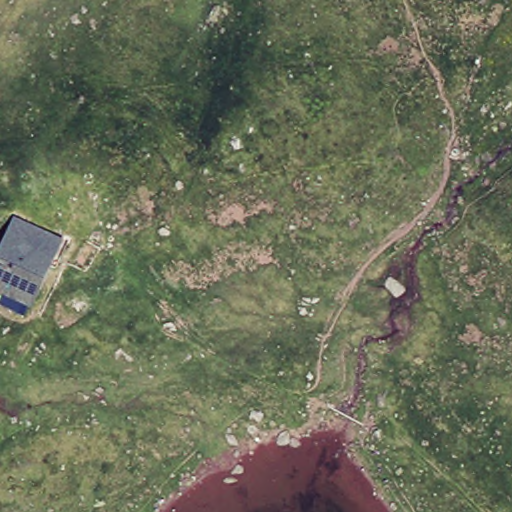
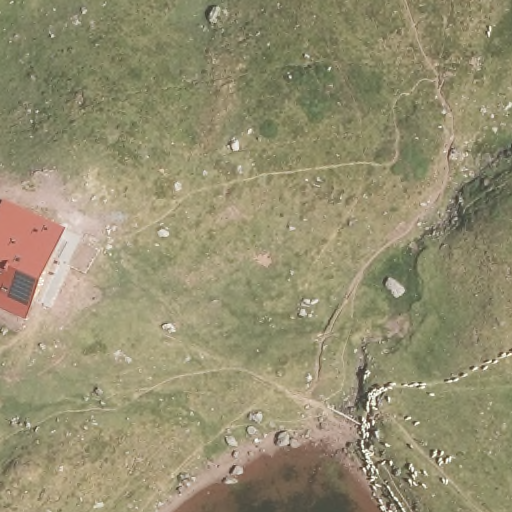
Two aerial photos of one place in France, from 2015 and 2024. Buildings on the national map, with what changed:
unchanged [(30,312),(3,302),(6,294),(0,292),(0,242),(11,215),(62,239),(30,312)]

